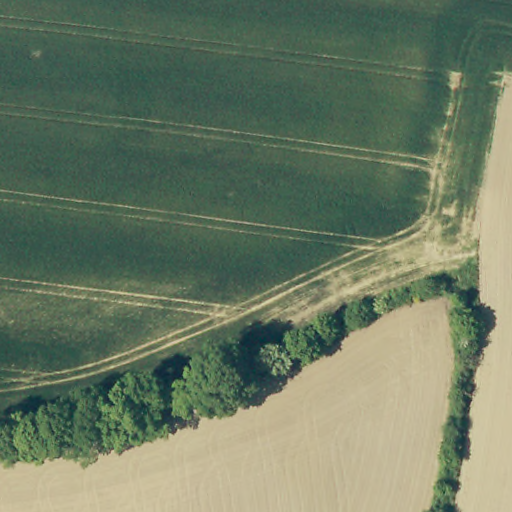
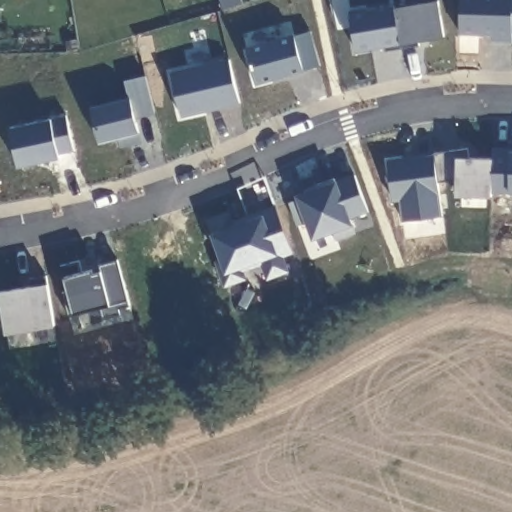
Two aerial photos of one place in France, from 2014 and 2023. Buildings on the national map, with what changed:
new [(438,0),(445,35),(419,39),(420,45),(402,47),(395,7),(438,0)]
new [(461,0),(512,0),(512,41),(492,40),(493,33),(460,33),(461,0)]
new [(395,4),(395,7),(402,47),(386,50),(385,45),(357,50),(350,11),(395,4)]
new [(295,34),(305,69),(257,82),(247,47),(295,34)]
new [(230,59),(240,101),(182,116),(171,73),(230,59)]
new [(130,97),(126,80),(147,75),(156,111),(136,116),(142,140),(122,145),(120,136),(100,141),(91,106),(130,97)]
new [(67,114),(74,149),(60,152),(60,156),(19,165),(11,126),(67,114)]
new [(468,147),(470,157),(493,158),(492,190),(492,195),(456,194),(457,179),(438,181),(435,154),(434,152),(468,147)]
new [(493,158),(493,148),(512,149),(512,191),(492,190),(493,158)]
new [(435,154),(438,181),(442,215),(403,221),(400,199),(392,199),(387,160),(435,154)]
new [(307,196),(306,192),(318,187),(317,184),(335,177),(337,181),(356,173),(368,209),(350,216),(356,232),(337,239),(333,230),(313,237),(307,221),(297,224),(290,203),(307,196)]
new [(229,211),(234,225),(247,221),(246,216),(277,205),(293,251),(282,255),(288,270),(267,277),(261,258),(241,266),(245,277),(226,284),(217,261),(222,259),(208,219),(229,211)]
new [(79,259),(83,274),(100,270),(99,264),(117,259),(130,305),(119,308),(120,313),(102,317),(100,307),(68,315),(62,291),(67,290),(60,264),(79,259)]

